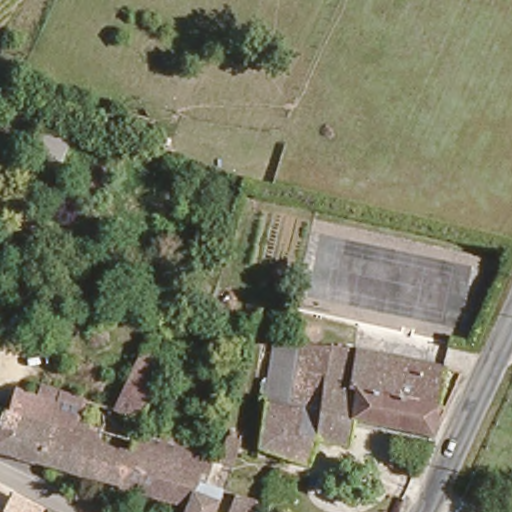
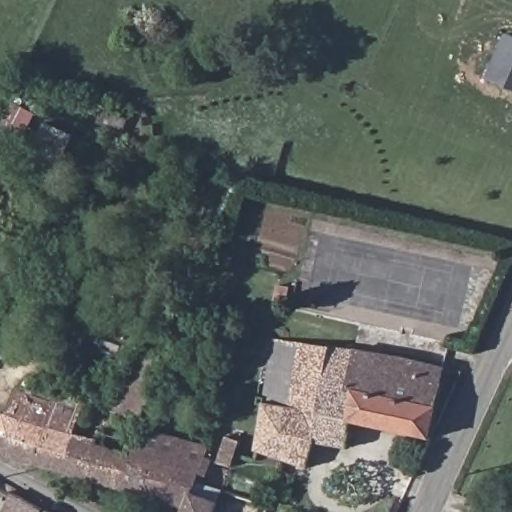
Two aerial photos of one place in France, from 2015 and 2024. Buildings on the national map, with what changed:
new [(512,35),(512,89),(487,78),(505,32),(512,35)]
unchanged [(273,332),(442,363),(429,434),(352,421),(348,447),(315,441),(260,424),(273,332)]
unchanged [(142,343),(165,353),(143,411),(161,417),(159,426),(205,445),(195,472),(193,477),(184,498),(19,454),(0,449),(0,412),(3,407),(10,410),(19,387),(40,396),(49,378),(113,402),(142,343)]
unchanged [(315,441),(310,465),(258,448),(260,424),(315,441)]
unchanged [(247,435),(238,458),(225,453),(234,430),(247,435)]
unchanged [(195,472),(210,477),(205,493),(218,498),(212,512),(179,512),(184,501),(184,498),(193,477),(195,472)]
unchanged [(36,512),(4,512),(0,510),(16,487),(40,505),(36,512)]
unchanged [(252,502),(249,512),(230,506),(234,496),(252,502)]

